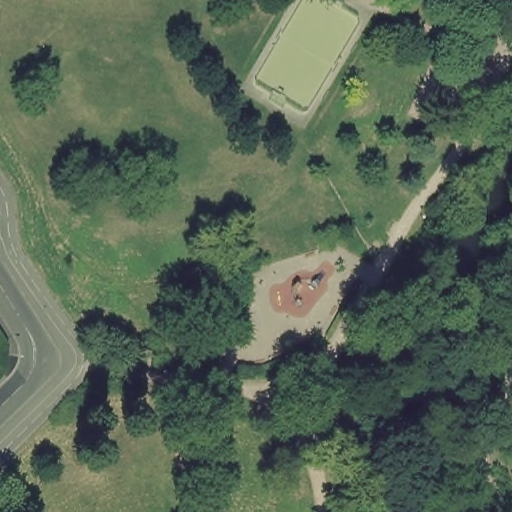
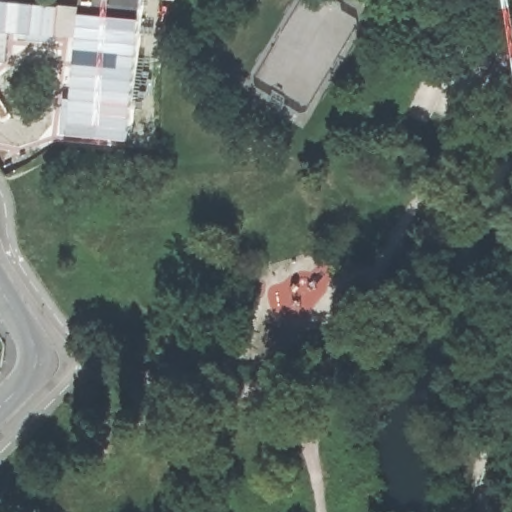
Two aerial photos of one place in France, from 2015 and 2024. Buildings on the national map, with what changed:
new [(70,36),(55,37),(51,38),(50,41),(11,38),(9,60),(0,60),(0,0),(25,0),(73,4),(70,36)]
new [(79,10),(117,12),(118,0),(141,0),(140,14),(137,63),(129,140),(64,134),(79,10)]

